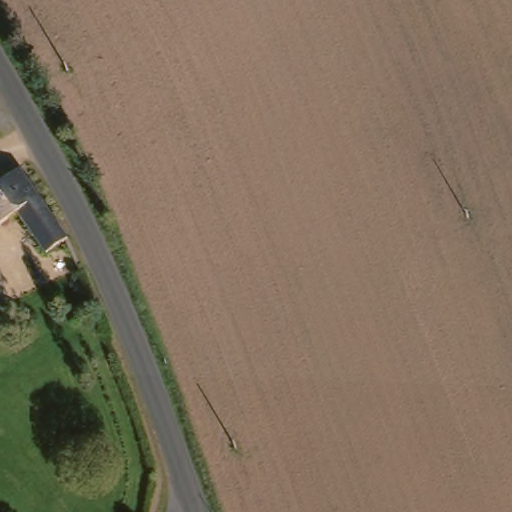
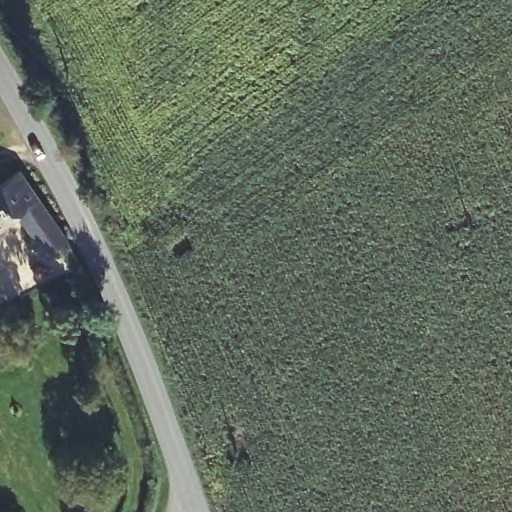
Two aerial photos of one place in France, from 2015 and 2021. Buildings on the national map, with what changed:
unchanged [(20,218),(0,232),(0,187),(21,172),(71,244),(48,257),(20,218)]
unchanged [(0,316),(0,311),(3,314),(0,316)]

